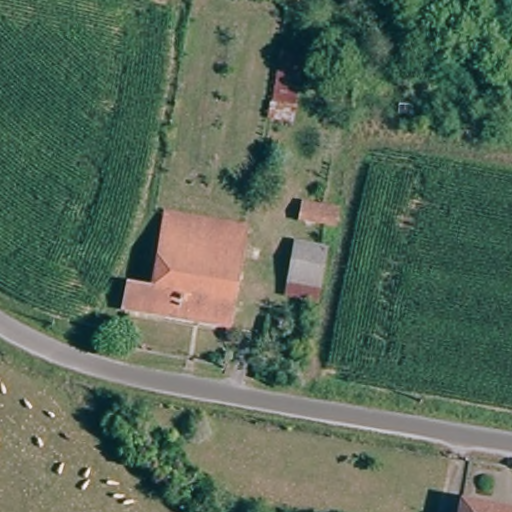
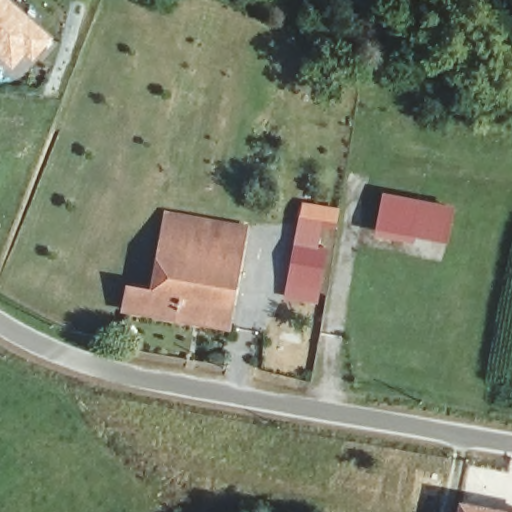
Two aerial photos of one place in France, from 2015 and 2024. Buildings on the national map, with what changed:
new [(50,36),(35,54),(27,47),(12,61),(0,51),(0,0),(8,0),(50,36)]
new [(456,204),(448,242),(416,237),(415,243),(377,235),(385,192),(456,204)]
unchanged [(132,292),(153,293),(170,212),(251,225),(228,332),(127,317),(132,292)]
unchanged [(316,305),(283,300),(290,245),(322,250),(316,305)]
unchanged [(512,507),(512,512),(466,512),(467,501),(512,507)]

